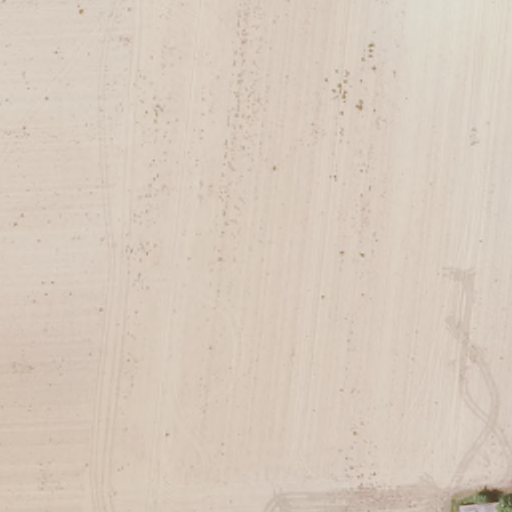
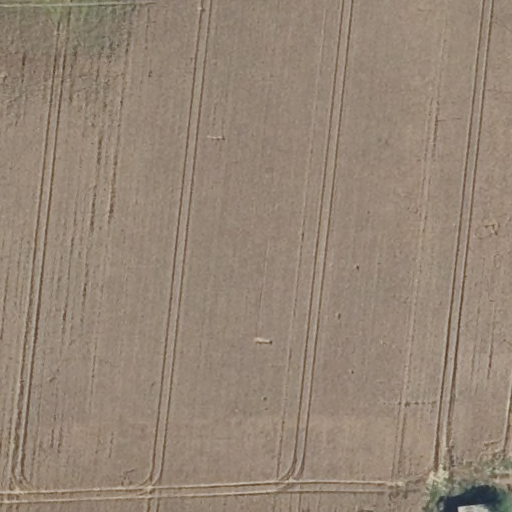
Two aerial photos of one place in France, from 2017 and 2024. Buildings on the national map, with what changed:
unchanged [(499,504),(500,512),(461,512),(460,509),(499,504)]

